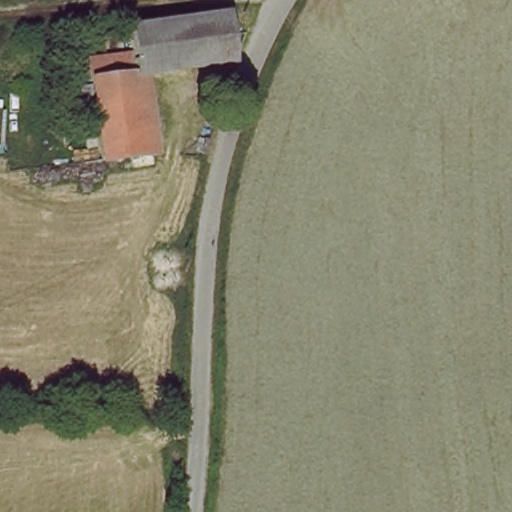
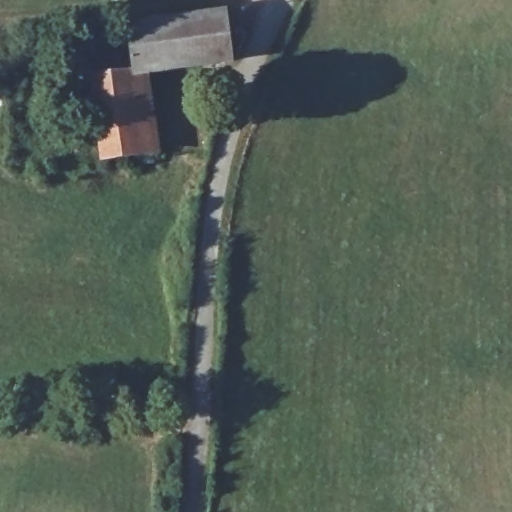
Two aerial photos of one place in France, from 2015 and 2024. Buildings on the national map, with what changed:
unchanged [(127,72),(125,54),(140,51),(137,25),(225,13),(232,59),(149,71),(161,155),(110,162),(98,76),(127,72)]

